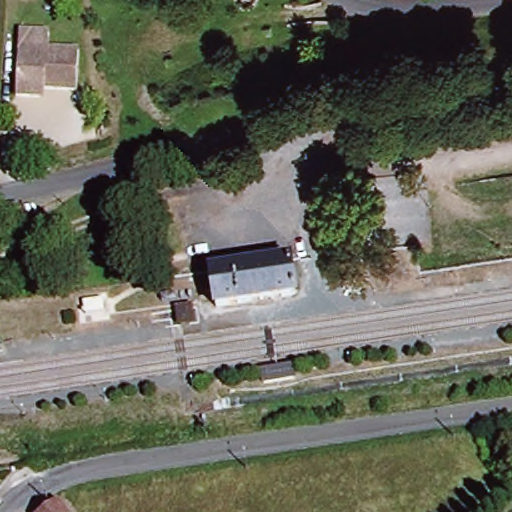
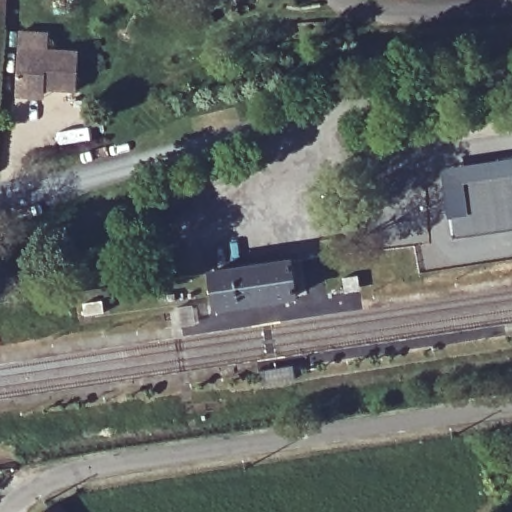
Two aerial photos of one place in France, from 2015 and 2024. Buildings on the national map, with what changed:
unchanged [(43,32),(42,49),(72,51),(70,89),(32,87),(32,96),(26,96),(8,94),(14,30),(20,31),(43,32)]
new [(453,236),(451,218),(448,219),(441,170),(512,159),(512,227),(453,236)]
unchanged [(209,308),(204,268),(290,257),(294,297),(209,308)]
unchanged [(506,434),(512,448),(512,482),(500,487),(479,444),(506,434)]
unchanged [(55,502),(62,512),(41,512),(55,502)]

